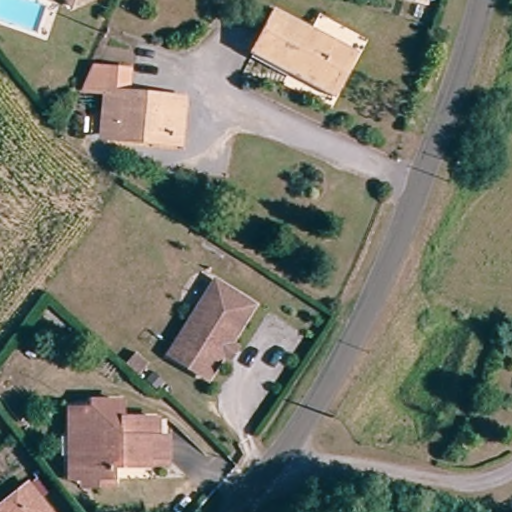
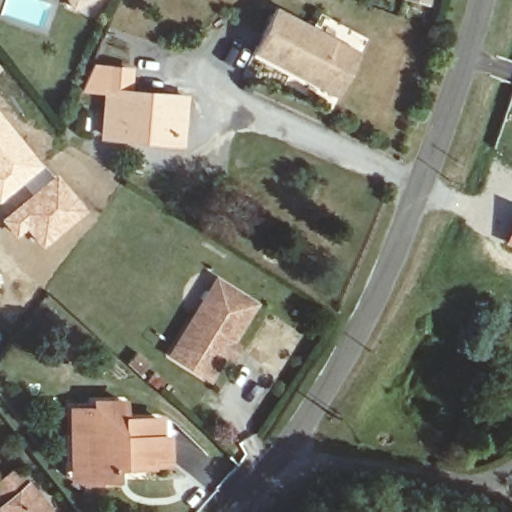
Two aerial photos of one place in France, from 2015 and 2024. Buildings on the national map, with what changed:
unchanged [(70,3),(69,0),(75,0),(70,3)]
unchanged [(356,49),(335,88),(258,44),(279,6),(356,49)]
unchanged [(174,134),(146,131),(145,141),(122,138),(122,134),(109,133),(113,91),(84,88),(95,59),(131,63),(129,85),(179,91),(174,134)]
unchanged [(193,92),(188,145),(145,141),(146,131),(174,134),(179,91),(193,92)]
new [(0,198),(0,114),(41,165),(0,198)]
new [(87,211),(41,249),(25,231),(15,238),(0,220),(0,217),(55,173),(87,211)]
new [(512,220),(512,248),(502,244),(512,220)]
unchanged [(257,302),(225,359),(219,370),(179,347),(195,320),(217,280),(257,302)]
unchanged [(86,487),(85,478),(75,479),(70,434),(67,412),(87,410),(86,400),(114,397),(116,415),(157,410),(166,410),(168,426),(170,446),(171,453),(149,455),(151,471),(117,474),(118,483),(86,487)]
unchanged [(60,512),(0,512),(0,502),(33,477),(60,512)]

